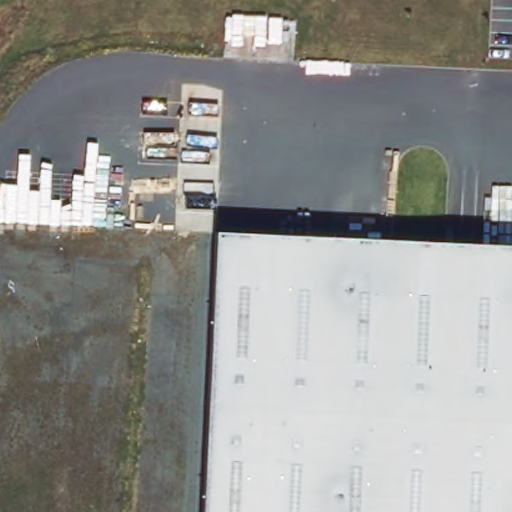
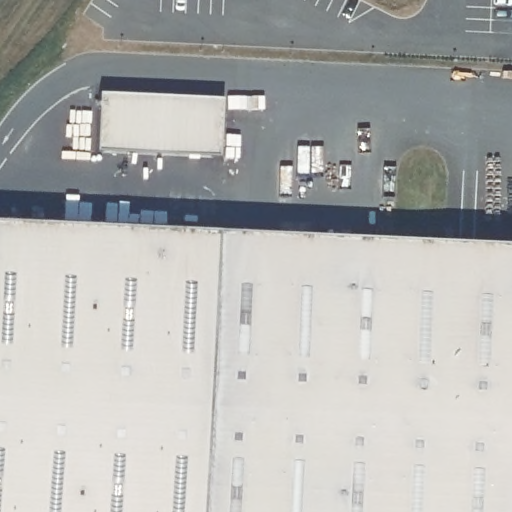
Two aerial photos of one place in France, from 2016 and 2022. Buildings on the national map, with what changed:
new [(99,92),(222,99),(218,156),(96,149),(99,92)]
new [(202,512),(0,512),(0,223),(215,233),(207,408),(202,512)]
unchanged [(512,246),(512,512),(202,512),(215,233),(512,246)]

